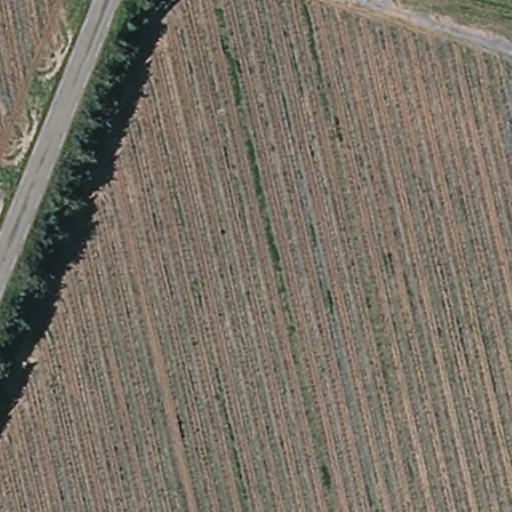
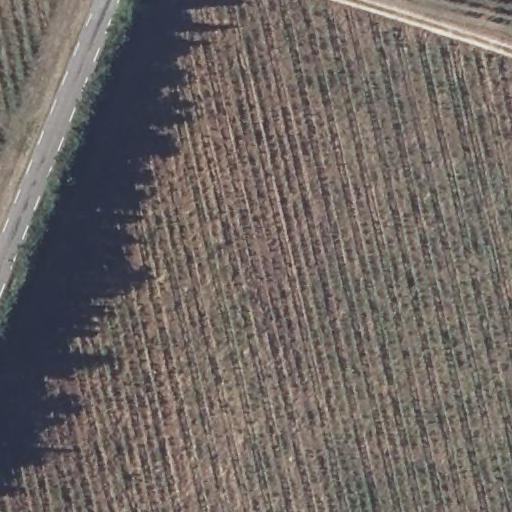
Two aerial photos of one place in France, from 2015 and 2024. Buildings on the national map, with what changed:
[]

